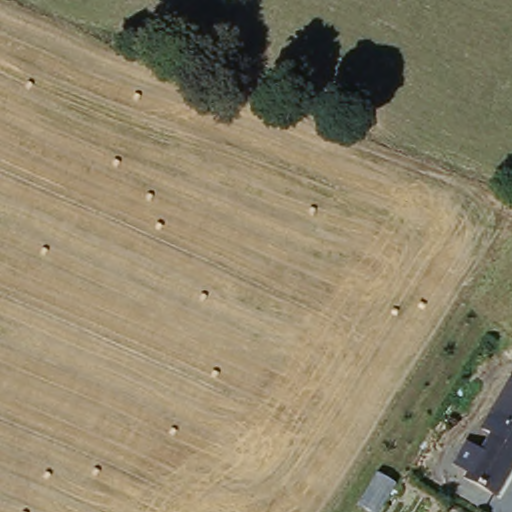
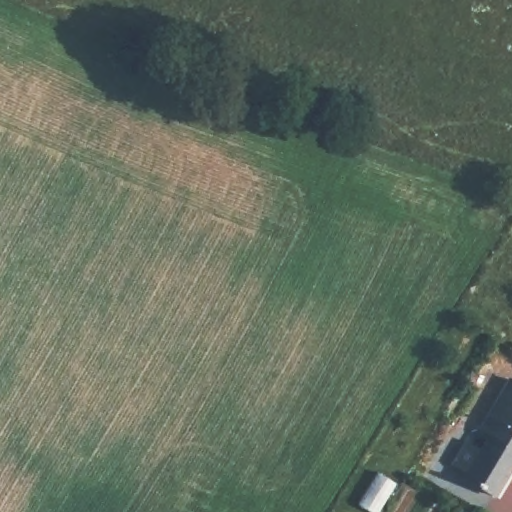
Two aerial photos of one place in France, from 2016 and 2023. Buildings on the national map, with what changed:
unchanged [(471,438),(486,446),(496,430),(487,423),(512,384),(512,471),(500,492),(471,475),(472,472),(458,463),(471,438)]

